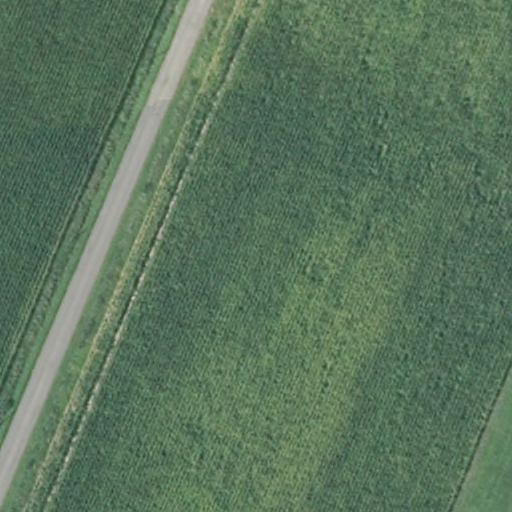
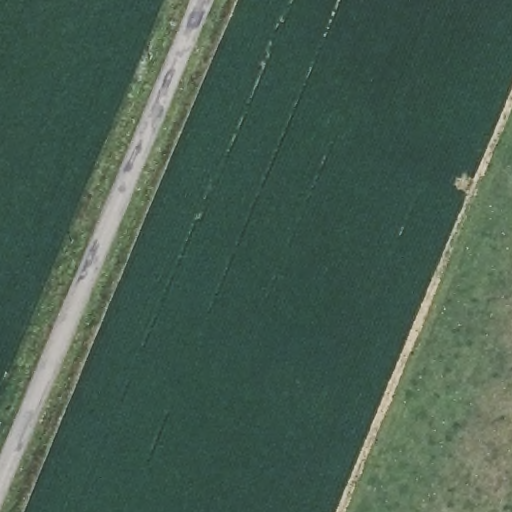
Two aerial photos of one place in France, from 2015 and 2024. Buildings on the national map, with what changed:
[]

